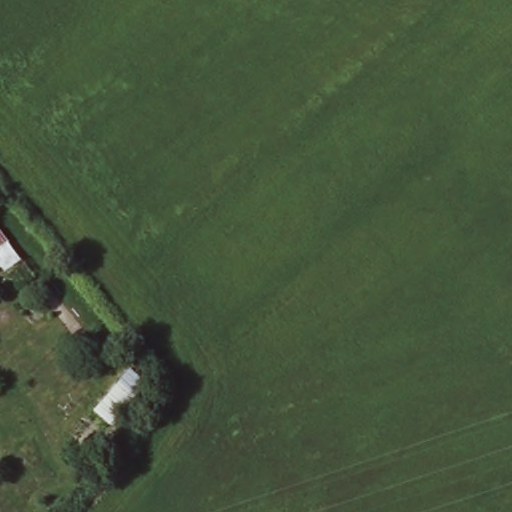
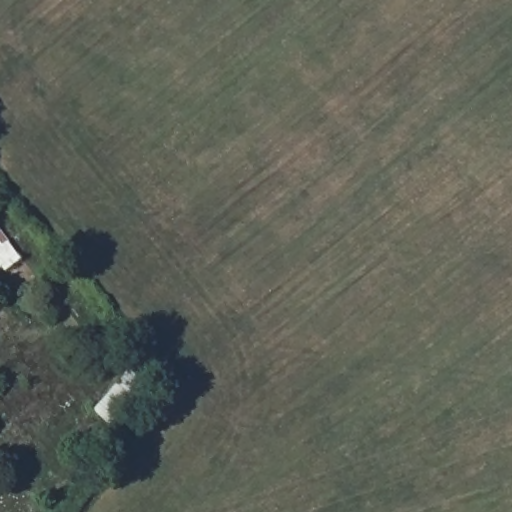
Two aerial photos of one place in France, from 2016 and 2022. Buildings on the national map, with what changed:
unchanged [(15,255),(0,266),(0,235),(15,255)]

